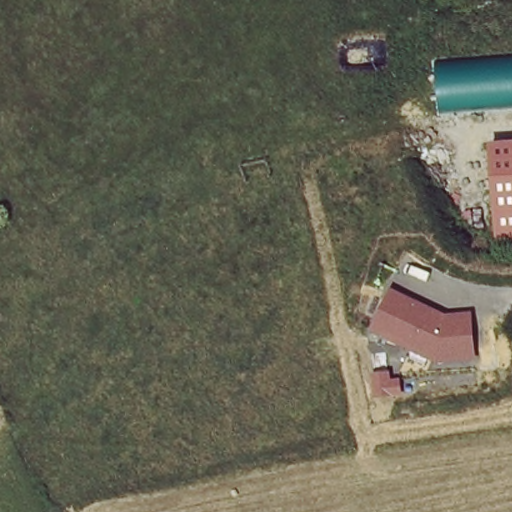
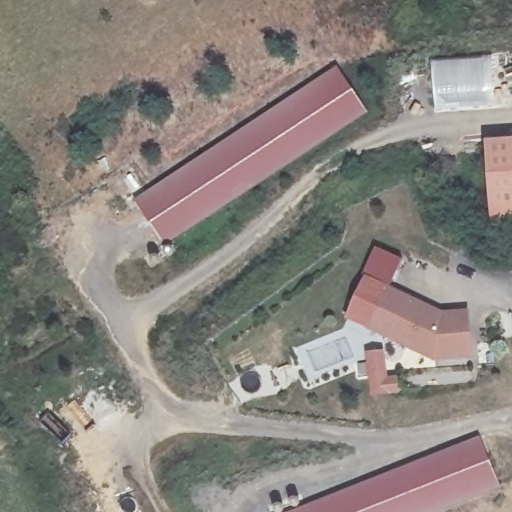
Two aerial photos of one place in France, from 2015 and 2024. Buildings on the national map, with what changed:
new [(489,56),(494,106),(434,113),(431,62),(489,56)]
new [(147,179),(150,182),(342,61),(367,101),(175,223),(155,191),(143,199),(135,186),(147,179)]
unchanged [(492,153),(492,138),(512,136),(512,234),(494,235),(492,153)]
new [(402,260),(388,288),(370,328),(345,315),(376,248),(402,260)]
unchanged [(474,362),(435,364),(368,331),(388,288),(444,311),(470,310),(474,362)]
new [(475,434),(492,478),(400,512),(262,512),(475,434)]

